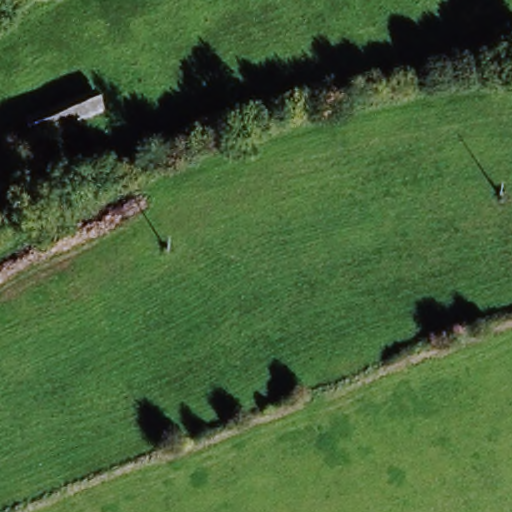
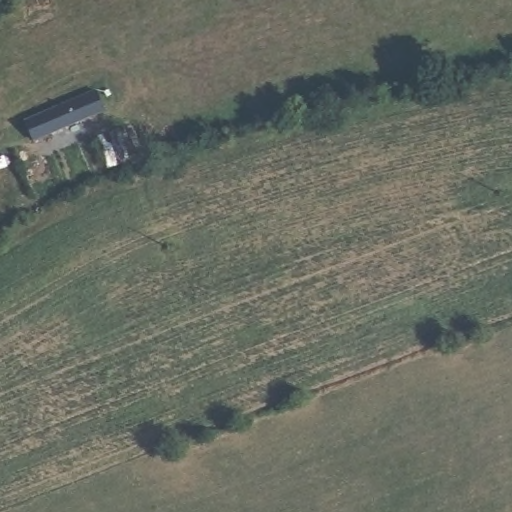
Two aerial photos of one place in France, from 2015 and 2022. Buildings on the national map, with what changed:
unchanged [(103,106),(35,137),(27,118),(95,87),(103,106)]

